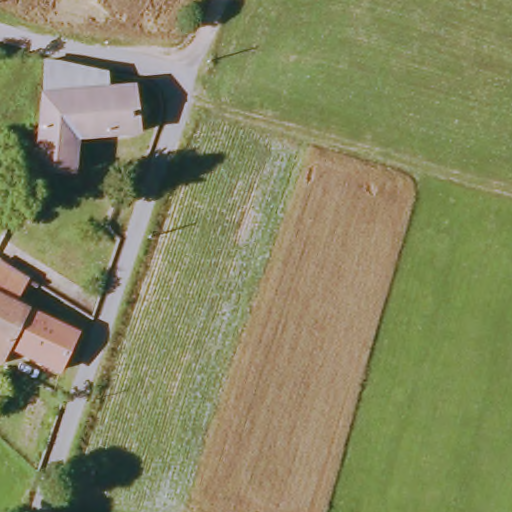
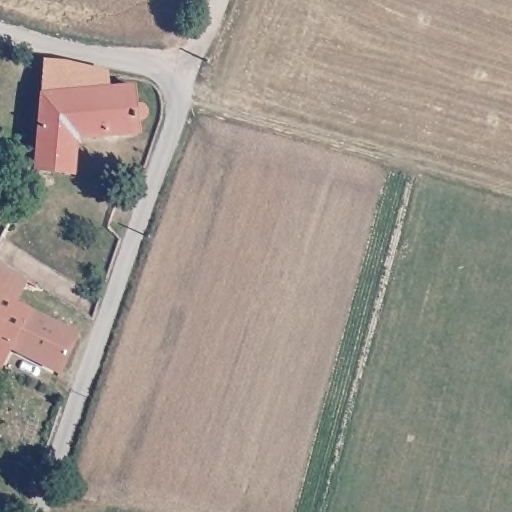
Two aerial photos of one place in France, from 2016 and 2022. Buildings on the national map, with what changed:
unchanged [(75,65),(108,74),(107,85),(45,87),(46,60),(75,65)]
unchanged [(107,85),(137,85),(140,132),(76,135),(74,170),(38,169),(45,87),(107,85)]
unchanged [(20,273),(30,279),(19,304),(75,335),(60,370),(11,346),(2,364),(0,363),(0,263),(20,273)]

